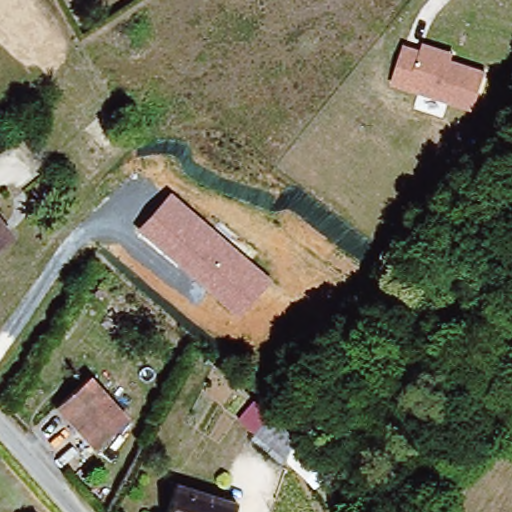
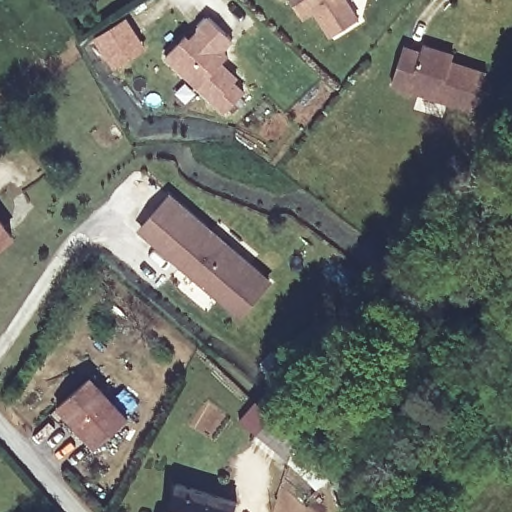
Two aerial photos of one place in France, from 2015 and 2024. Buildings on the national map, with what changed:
new [(330,36),(315,12),(303,20),(291,0),(348,0),(359,18),(330,36)]
new [(235,41),(225,51),(230,56),(223,63),(237,78),(235,81),(246,93),(224,116),(162,57),(186,33),(190,37),(208,17),(235,41)]
new [(123,20),(145,50),(115,70),(93,40),(123,20)]
unchanged [(421,50),(423,44),(453,53),(452,61),(485,71),(473,113),(390,85),(403,46),(421,50)]
unchanged [(273,282),(239,320),(133,231),(169,191),(273,282)]
unchanged [(0,250),(0,212),(17,231),(0,250)]
unchanged [(130,422),(97,449),(65,406),(62,402),(77,388),(95,372),(130,422)]
unchanged [(253,395),(296,432),(286,454),(238,413),(253,395)]
unchanged [(180,478),(240,499),(235,512),(168,512),(180,478)]

